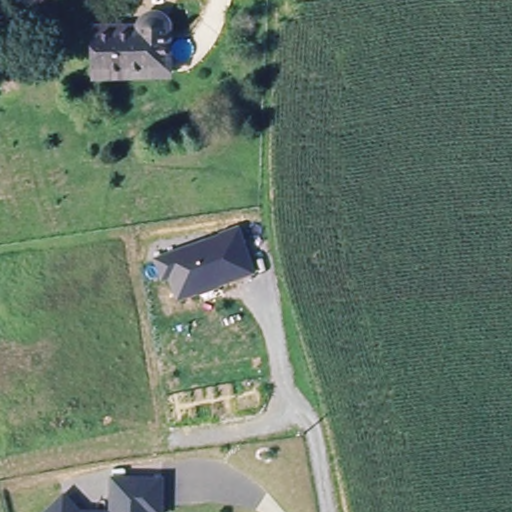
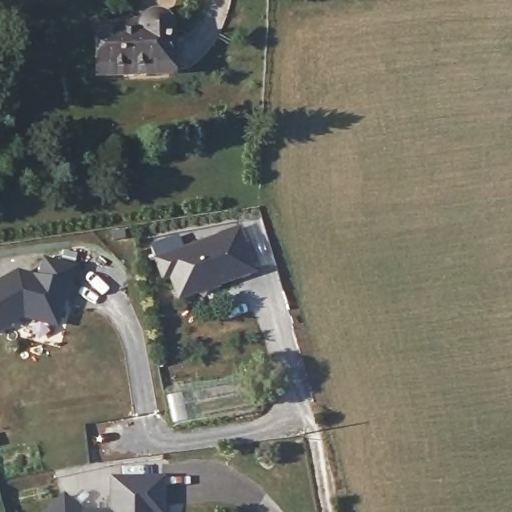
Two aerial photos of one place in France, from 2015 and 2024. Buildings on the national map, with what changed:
unchanged [(102,79),(101,40),(140,39),(149,25),(162,22),(173,32),(175,78),(102,79)]
unchanged [(158,257),(223,233),(223,232),(240,225),(256,270),(222,282),(212,278),(198,283),(200,291),(181,297),(173,275),(165,277),(158,257)]
new [(43,258),(74,267),(68,288),(70,288),(67,302),(61,301),(54,326),(22,316),(0,328),(0,282),(16,272),(37,278),(43,258)]
unchanged [(72,510),(104,510),(104,475),(153,476),(153,511),(145,511),(145,512),(37,512),(56,493),(72,510)]

